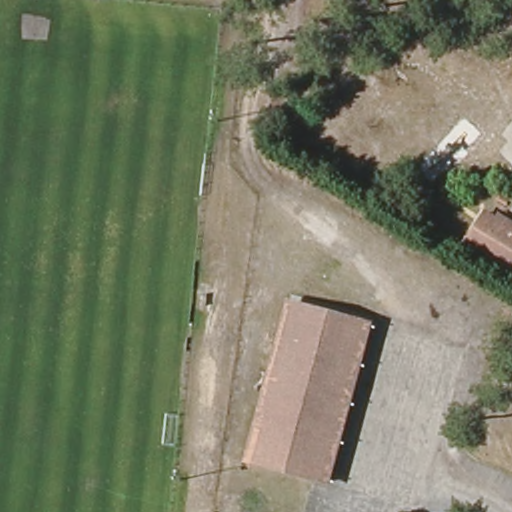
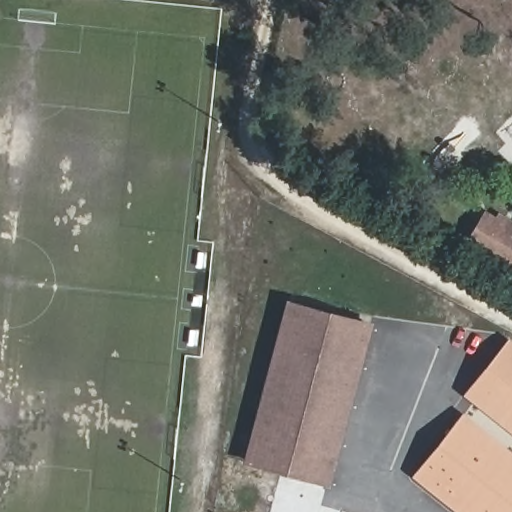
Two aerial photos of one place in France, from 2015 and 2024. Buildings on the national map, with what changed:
unchanged [(498,219),(502,214),(512,220),(512,269),(511,271),(499,265),(494,274),(477,263),(481,257),(464,247),(484,212),(498,219)]
unchanged [(376,326),(331,492),(249,468),(292,305),(376,326)]
new [(469,397),(512,343),(512,432),(469,397)]
new [(458,512),(418,477),(464,414),(512,454),(512,512),(458,512)]

